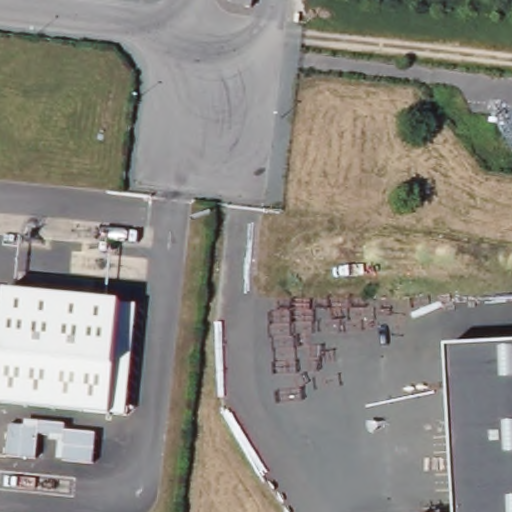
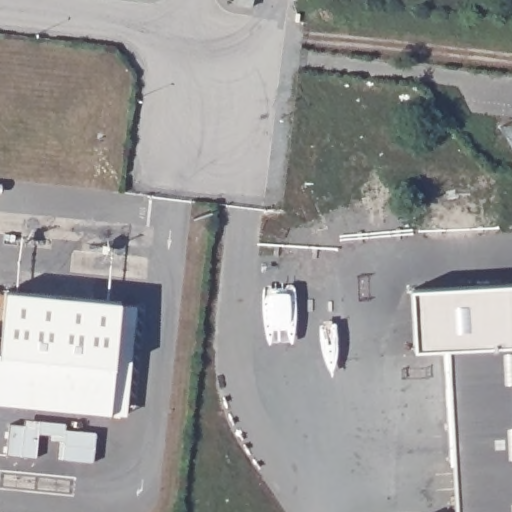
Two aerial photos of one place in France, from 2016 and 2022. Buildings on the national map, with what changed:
new [(445,346),(445,348),(415,350),(412,290),(512,285),(512,342),(445,346)]
unchanged [(116,325),(132,327),(126,418),(0,406),(0,292),(118,301),(116,325)]
unchanged [(453,512),(445,346),(512,342),(512,512),(453,512)]
new [(9,425),(39,427),(39,422),(66,425),(65,430),(96,433),(93,463),(62,460),(64,436),(37,434),(35,458),(6,455),(9,425)]

